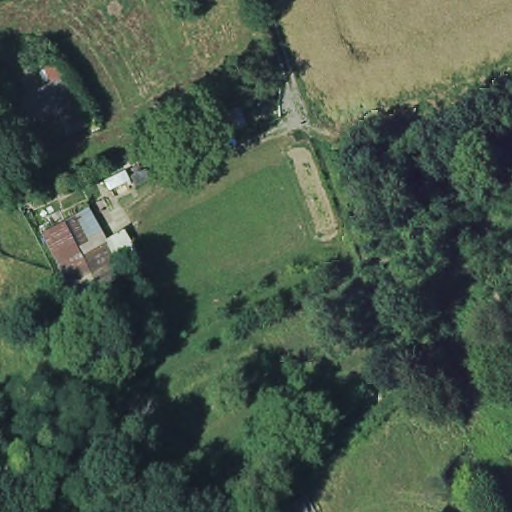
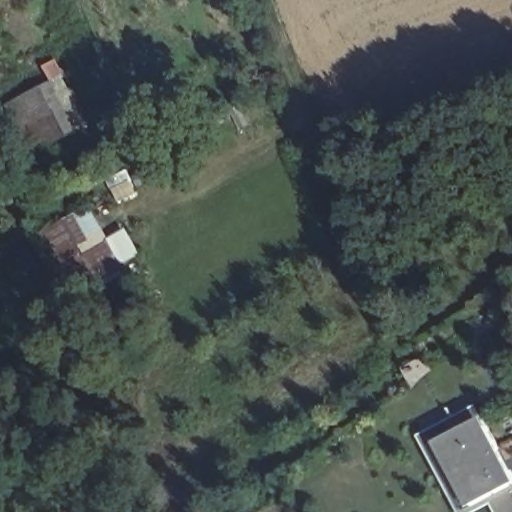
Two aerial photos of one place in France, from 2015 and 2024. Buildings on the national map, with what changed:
unchanged [(89,122),(27,151),(7,102),(66,73),(89,122)]
unchanged [(39,226),(92,207),(112,259),(60,279),(39,226)]
new [(484,421),(460,434),(465,442),(435,457),(463,512),(456,512),(419,438),(477,407),(484,421)]
new [(460,434),(484,421),(512,475),(512,512),(501,512),(494,498),(466,512),(463,512),(435,457),(465,442),(460,434)]
new [(501,512),(494,512),(491,506),(480,512),(466,512),(494,498),(501,512)]

